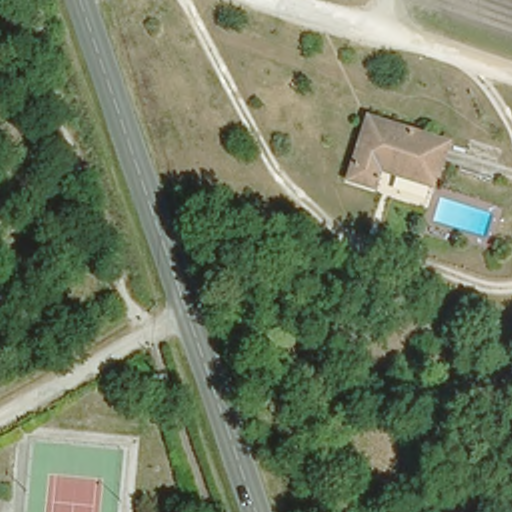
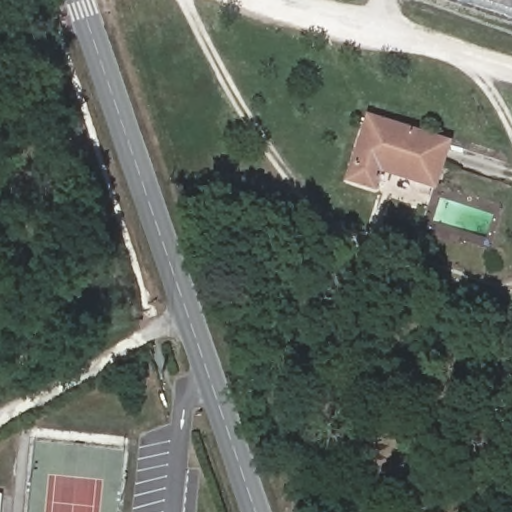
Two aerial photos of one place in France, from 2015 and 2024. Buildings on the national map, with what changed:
unchanged [(430,178),(376,159),(370,177),(349,169),(368,108),(444,134),(430,178)]

